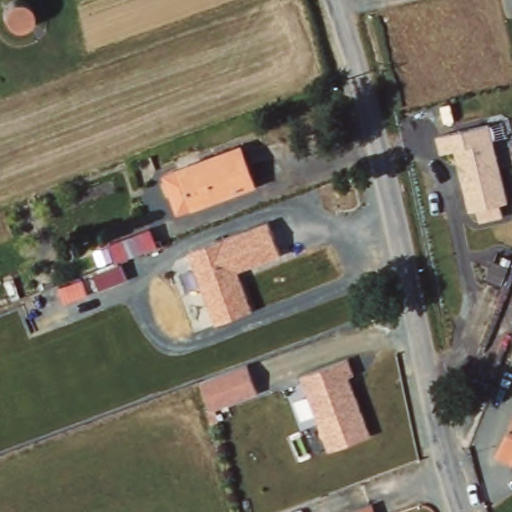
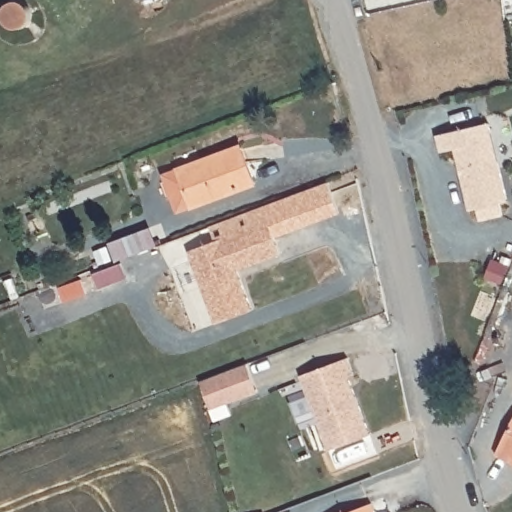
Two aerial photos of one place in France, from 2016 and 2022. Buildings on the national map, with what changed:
unchanged [(10,0),(25,0),(28,1),(33,8),(34,16),(31,24),(24,29),(16,30),(8,27),(3,20),(1,12),(5,4),(10,0)]
unchanged [(475,209),(467,212),(453,150),(440,153),(436,136),(489,124),(509,201),(501,203),(503,216),(480,222),(475,209)]
unchanged [(197,212),(183,216),(166,173),(178,168),(243,146),(262,187),(197,212)]
new [(208,227),(329,182),(340,216),(277,237),(270,218),(213,239),(208,227)]
unchanged [(188,248),(270,218),(282,252),(240,267),(253,306),(214,320),(188,248)]
unchanged [(118,264),(110,244),(154,230),(161,248),(118,264)]
new [(121,264),(127,279),(99,290),(93,274),(121,264)]
unchanged [(344,356),(350,354),(356,370),(350,373),(372,432),(328,448),(300,373),(344,356)]
unchanged [(248,361),(259,390),(212,408),(201,379),(248,361)]
unchanged [(497,457),(512,421),(512,463),(497,457)]
unchanged [(373,501),(377,512),(341,512),(366,503),(373,501)]

